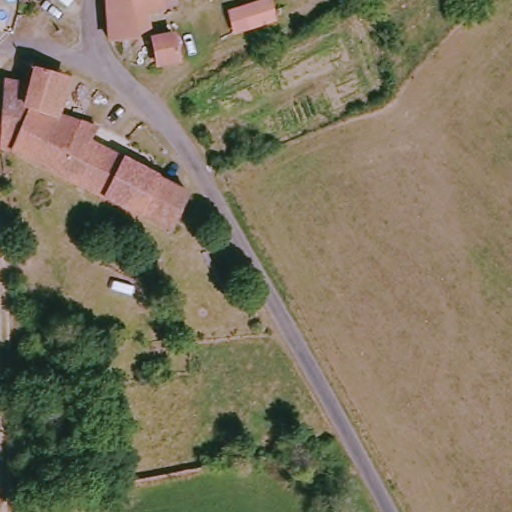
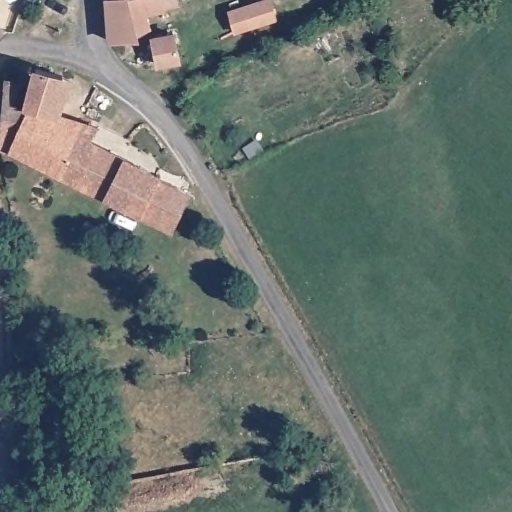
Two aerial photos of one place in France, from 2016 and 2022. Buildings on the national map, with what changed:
unchanged [(160,11),(143,15),(146,32),(133,41),(106,43),(104,0),(173,0),(174,7),(160,11)]
unchanged [(231,27),(227,27),(224,23),(225,17),(225,6),(238,0),(269,0),(272,15),(268,19),(273,32),(237,46),(231,27)]
unchanged [(157,67),(156,64),(152,39),(170,35),(171,42),(177,62),(157,67)]
unchanged [(30,84),(36,67),(59,76),(70,80),(58,113),(79,121),(55,169),(9,146),(27,95),(30,84)]
unchanged [(18,81),(17,91),(27,95),(9,146),(0,142),(0,87),(0,76),(18,81)]
unchanged [(55,169),(79,121),(95,127),(89,142),(120,157),(104,192),(55,169)]
unchanged [(120,157),(154,175),(138,209),(104,192),(120,157)]
unchanged [(168,224),(138,209),(154,175),(182,189),(185,190),(168,224)]

